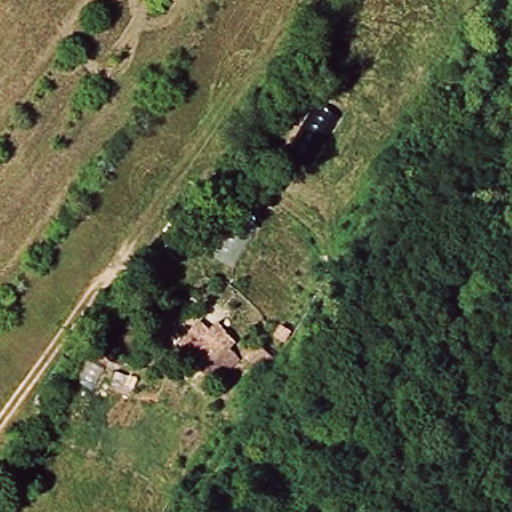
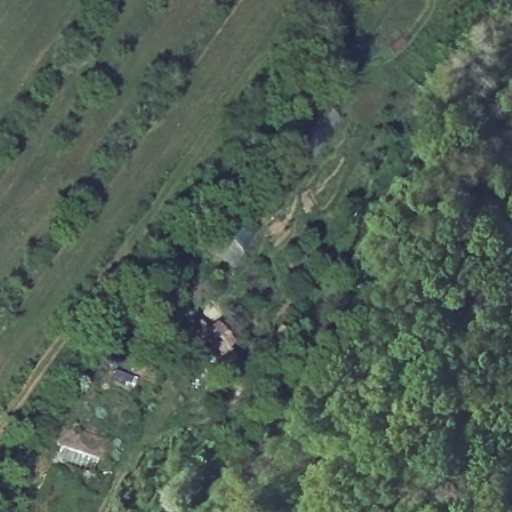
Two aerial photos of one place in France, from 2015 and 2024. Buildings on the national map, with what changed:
unchanged [(237,321),(233,324),(243,336),(218,360),(194,338),(185,326),(206,312),(208,316),(225,304),(237,321)]

